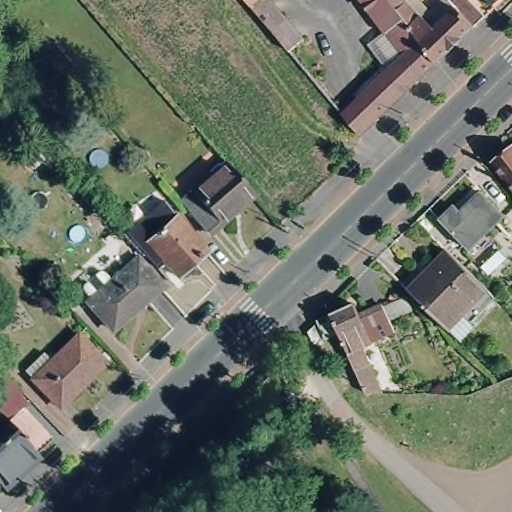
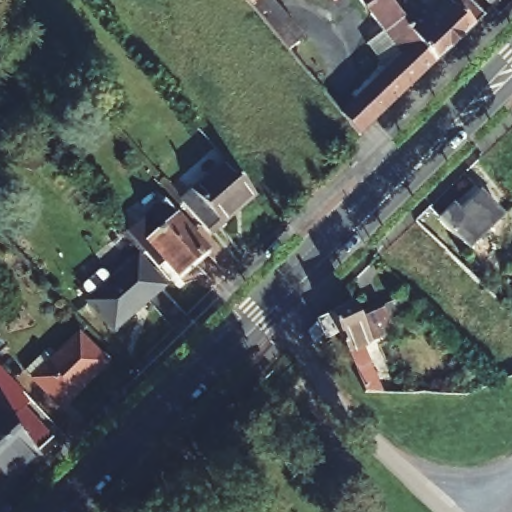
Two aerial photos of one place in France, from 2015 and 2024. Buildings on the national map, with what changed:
unchanged [(287,51),(243,0),(270,0),(302,38),(287,51)]
unchanged [(359,0),(387,0),(391,5),(395,9),(430,58),(433,63),(393,101),(357,135),(339,113),(385,69),(365,45),(382,30),(359,0)]
unchanged [(416,0),(427,12),(440,0),(448,0),(450,2),(453,0),(468,0),(482,15),(433,63),(430,58),(395,9),(405,0),(416,0)]
unchanged [(497,0),(492,4),(489,0),(497,0)]
demolished [(488,154),(507,139),(512,146),(512,184),(488,154)]
unchanged [(253,193),(220,222),(217,220),(205,232),(180,203),(225,162),(253,193)]
unchanged [(439,214),(452,200),(458,207),(480,186),(503,211),(467,245),(439,214)]
unchanged [(175,212),(207,248),(176,276),(162,262),(157,267),(126,233),(163,200),(173,212),(175,212)]
demolished [(408,287),(447,247),(486,284),(447,324),(408,287)]
unchanged [(135,257),(162,286),(142,305),(139,301),(108,328),(85,302),(135,257)]
unchanged [(363,388),(337,328),(324,334),(322,330),(313,338),(307,327),(317,318),(317,316),(330,310),(353,299),(358,312),(405,292),(411,306),(388,316),(393,328),(369,338),(370,340),(362,343),(382,389),(363,388)]
unchanged [(107,362),(60,408),(32,379),(22,370),(47,346),(57,355),(78,333),(107,362)]
unchanged [(0,351),(0,342),(5,347),(0,351)]
unchanged [(27,403),(24,407),(52,437),(37,453),(0,414),(0,413),(19,394),(27,403)]
unchanged [(0,414),(37,453),(40,456),(3,489),(0,486),(0,414)]

